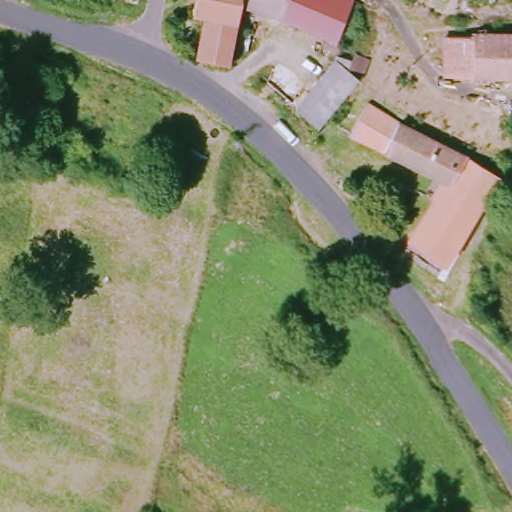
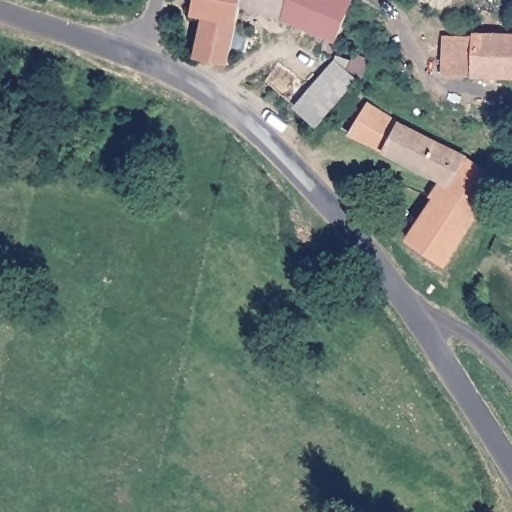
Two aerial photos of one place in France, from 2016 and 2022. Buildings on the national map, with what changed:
unchanged [(194,15),(195,0),(240,0),(238,6),(224,66),(196,54),(208,19),(194,15)]
unchanged [(288,21),(238,6),(240,0),(344,0),(334,42),(288,21)]
unchanged [(512,40),(512,79),(437,75),(439,34),(512,40)]
unchanged [(351,79),(313,120),(296,104),(329,65),(332,66),(339,57),(349,63),(356,57),(363,58),(351,79)]
unchanged [(347,137),(366,104),(396,120),(379,153),(347,137)]
unchanged [(406,246),(439,181),(379,153),(396,120),(498,177),(443,269),(406,246)]

